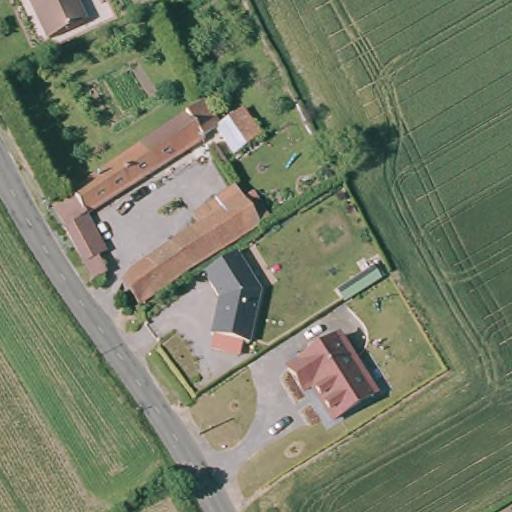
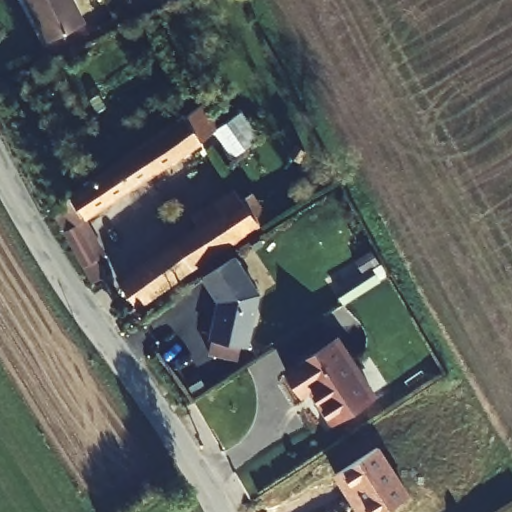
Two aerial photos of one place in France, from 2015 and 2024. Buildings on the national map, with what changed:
unchanged [(48,41),(26,0),(77,0),(89,21),(48,41)]
unchanged [(55,189),(60,198),(210,103),(217,114),(237,102),(260,141),(239,153),(225,133),(80,224),(100,264),(85,273),(38,199),(55,189)]
unchanged [(237,204),(254,229),(140,300),(125,275),(237,204)]
unchanged [(269,296),(253,351),(215,340),(225,312),(205,281),(245,258),(269,296)]
unchanged [(310,389),(300,396),(283,369),(339,334),(377,394),(331,424),(310,389)]
new [(410,495),(384,512),(356,512),(333,476),(379,446),(410,495)]

